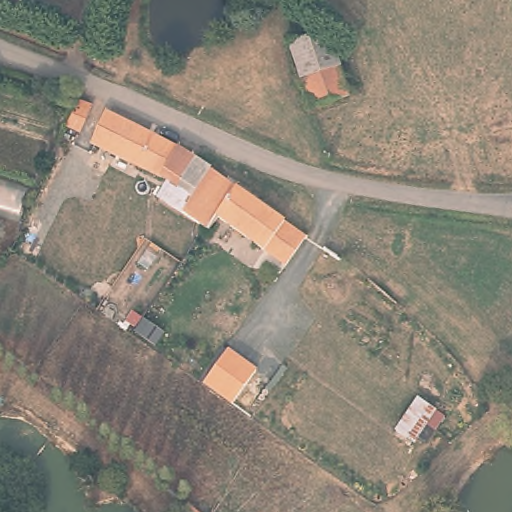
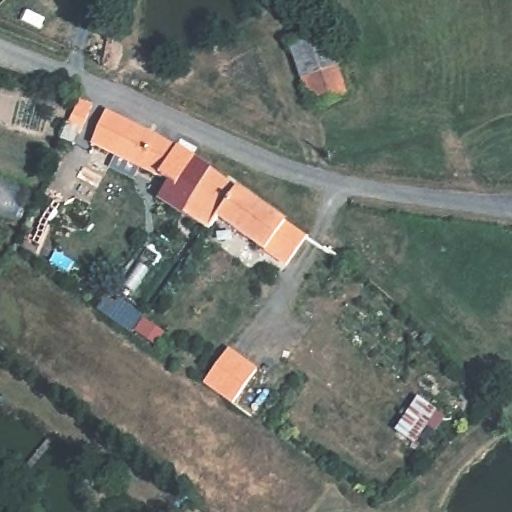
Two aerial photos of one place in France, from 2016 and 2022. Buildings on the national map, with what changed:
unchanged [(336,25),(346,57),(332,61),(342,93),(304,104),(283,40),(322,29),(336,25)]
unchanged [(72,130),(60,123),(71,96),(84,102),(72,130)]
unchanged [(289,262),(218,212),(208,225),(162,194),(174,176),(162,170),(94,139),(109,109),(177,143),(192,156),(308,234),(289,262)]
unchanged [(20,217),(0,211),(0,178),(27,185),(20,217)]
unchanged [(220,350),(245,367),(224,398),(203,384),(199,381),(220,350)]

